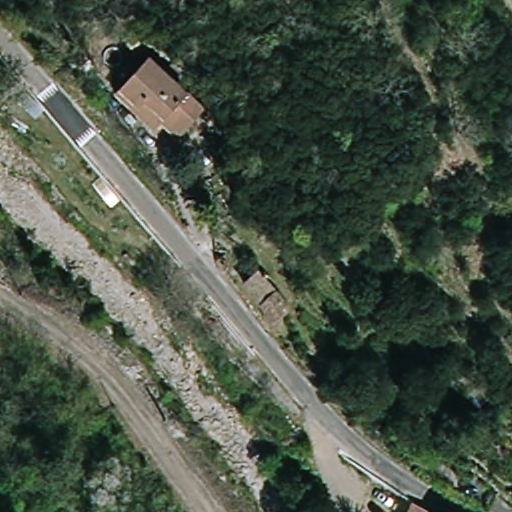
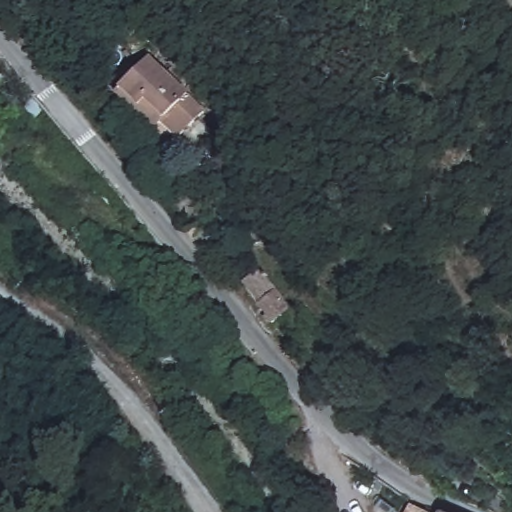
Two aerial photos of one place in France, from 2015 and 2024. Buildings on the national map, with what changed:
unchanged [(119,85),(128,76),(158,48),(206,100),(177,129),(164,114),(154,124),(119,85)]
unchanged [(245,283),(259,269),(290,304),(276,317),(245,283)]

